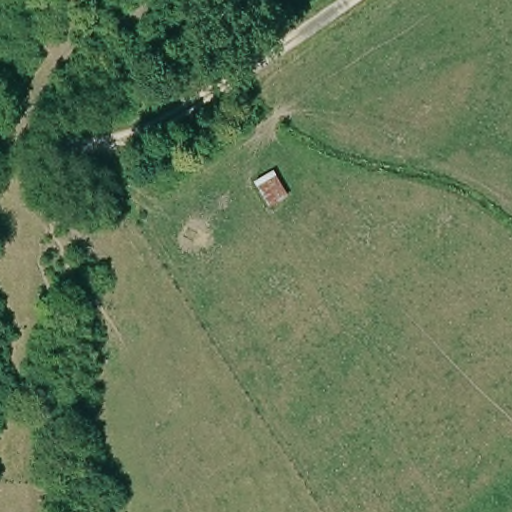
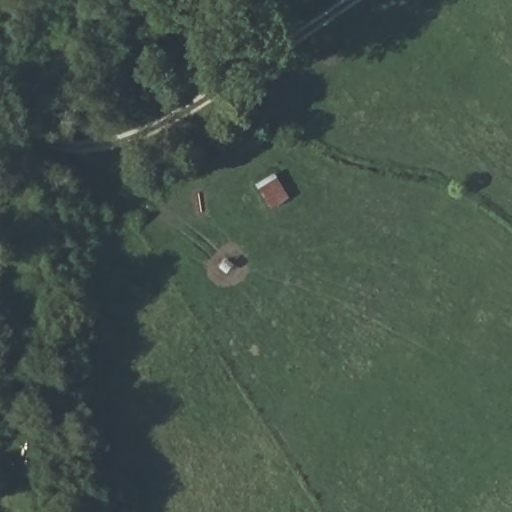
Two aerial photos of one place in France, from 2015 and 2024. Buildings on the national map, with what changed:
unchanged [(266,213),(255,184),(274,174),(286,199),(266,213)]

